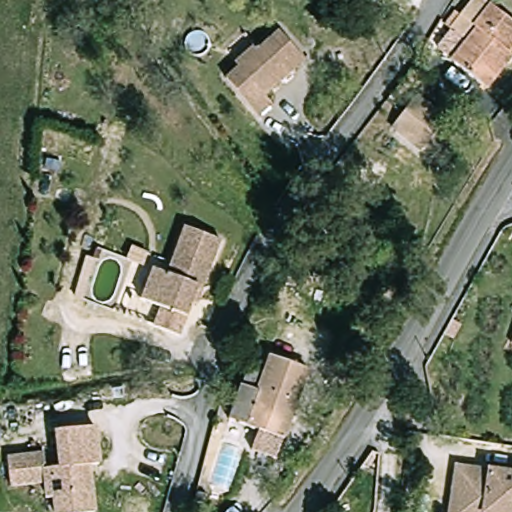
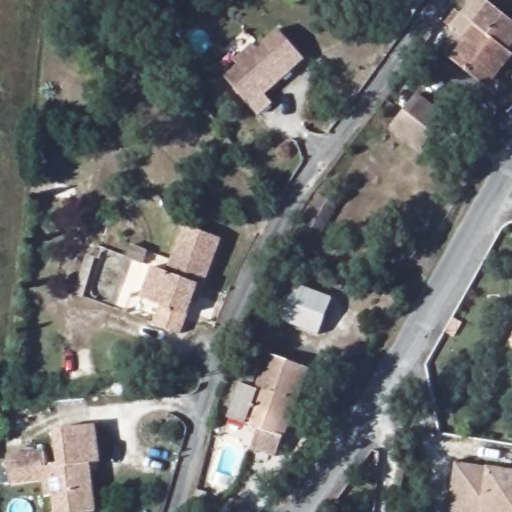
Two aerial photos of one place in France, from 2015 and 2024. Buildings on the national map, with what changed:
unchanged [(434,41),(449,23),(444,18),(455,6),(460,10),(468,0),(490,0),(512,18),(512,40),(507,46),(512,52),(512,53),(486,84),(480,79),(451,55),(434,41)]
unchanged [(304,60),(264,95),(272,104),(259,116),(225,78),(239,66),(231,58),(249,42),(257,51),(278,32),(304,60)]
unchanged [(423,148),(406,134),(392,123),(418,92),(447,116),(427,143),(423,148)]
unchanged [(142,290),(154,261),(167,266),(186,220),(222,236),(201,290),(196,289),(179,329),(155,319),(125,306),(134,286),(142,290)]
new [(334,298),(321,335),(283,321),(297,284),(334,298)]
unchanged [(245,376),(261,382),(274,346),(313,362),(275,456),(252,447),(258,428),(229,416),(245,376)]
unchanged [(49,498),(47,480),(12,485),(8,458),(43,454),(45,469),(61,466),(56,430),(96,425),(100,461),(90,463),(91,473),(97,512),(59,512),(57,496),(49,498)]
unchanged [(456,464),(503,472),(504,466),(512,467),(512,512),(448,512),(451,493),(456,464)]

